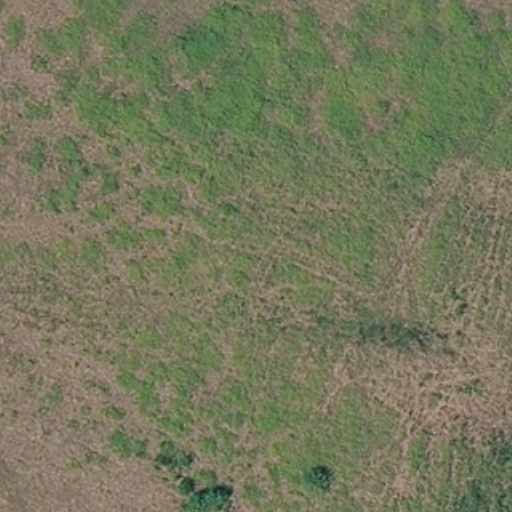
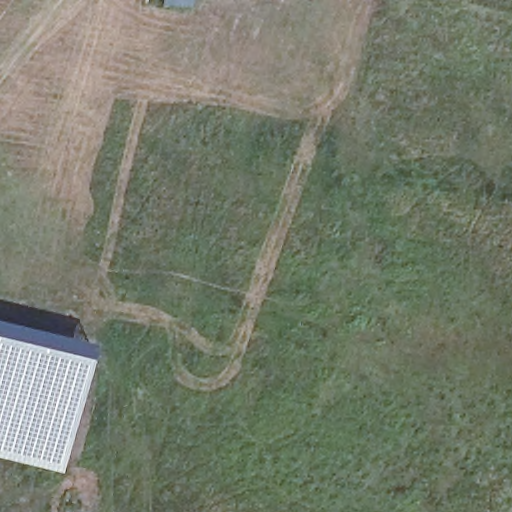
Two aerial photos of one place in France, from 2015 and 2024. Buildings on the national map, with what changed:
new [(190,10),(162,4),(163,0),(193,0),(190,10)]
new [(92,343),(61,472),(0,458),(0,321),(92,343)]

